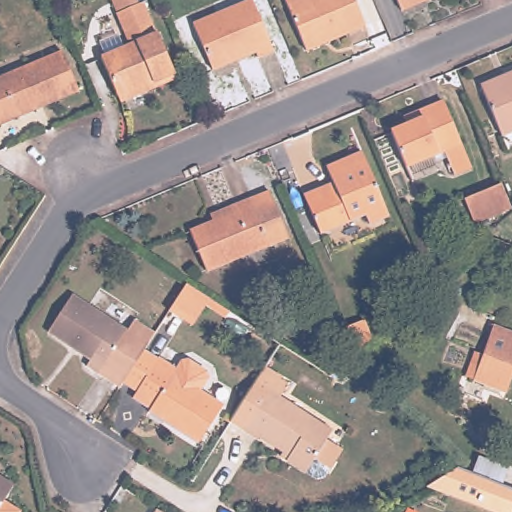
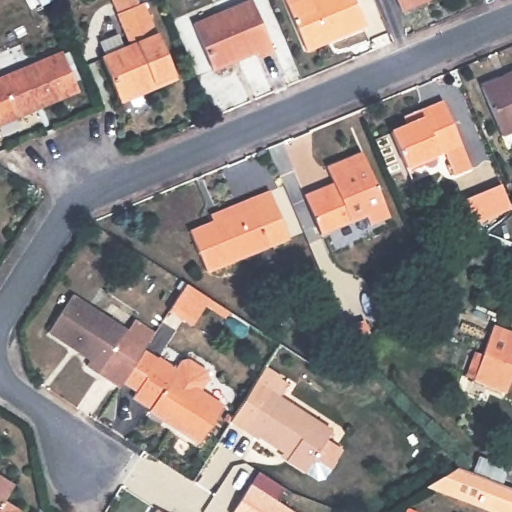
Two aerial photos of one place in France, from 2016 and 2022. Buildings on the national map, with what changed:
unchanged [(120,93),(104,53),(132,41),(119,8),(127,5),(125,0),(144,0),(157,31),(159,30),(177,74),(146,87),(122,98),(120,93)]
unchanged [(245,0),(256,0),(275,45),(260,52),(258,47),(214,66),(196,21),(245,0)]
unchanged [(367,21),(308,46),(289,0),(358,0),(367,21)]
unchanged [(402,11),(398,0),(429,0),(402,11)]
unchanged [(76,86),(0,118),(0,72),(60,47),(76,86)]
unchanged [(512,70),(512,127),(502,132),(482,82),(512,70)]
unchanged [(456,171),(453,165),(446,147),(407,163),(393,127),(425,113),(423,107),(446,97),(470,157),(472,163),(456,171)]
unchanged [(363,149),(371,166),(390,212),(371,220),(367,211),(347,219),(322,229),(306,191),(326,182),(335,179),(328,162),(363,149)]
unchanged [(486,228),(479,235),(472,217),(463,194),(500,179),(510,202),(511,205),(486,228)]
unchanged [(280,238),(198,271),(183,231),(206,222),(203,215),(227,206),(261,191),(280,238)]
unchanged [(186,323),(169,312),(188,283),(212,299),(203,313),(194,327),(186,323)]
unchanged [(91,354),(49,326),(73,290),(129,326),(136,315),(156,328),(149,339),(121,382),(88,360),(91,354)]
unchanged [(475,378),(485,354),(494,328),(512,335),(512,380),(508,391),(475,378)]
unchanged [(159,353),(175,363),(181,355),(187,353),(207,366),(208,372),(200,386),(224,401),(199,439),(148,406),(149,404),(133,393),(159,353)]
unchanged [(356,354),(366,365),(352,377),(343,365),(356,354)]
unchanged [(326,436),(341,446),(321,476),(288,454),(290,451),(260,431),(258,433),(232,416),(231,418),(226,415),(228,410),(234,414),(265,365),(268,360),(285,372),(282,377),(290,382),(283,393),(315,414),(333,426),(328,434),(326,436)]
unchanged [(459,461),(494,475),(486,496),(453,483),(451,489),(428,480),(459,461)]
unchanged [(0,505),(0,472),(15,482),(0,505)]
unchanged [(486,496),(494,475),(512,482),(512,511),(512,512),(510,512),(451,489),(453,483),(486,496)]
new [(296,512),(232,512),(252,483),(296,512)]
unchanged [(171,512),(153,512),(158,504),(171,512)]

